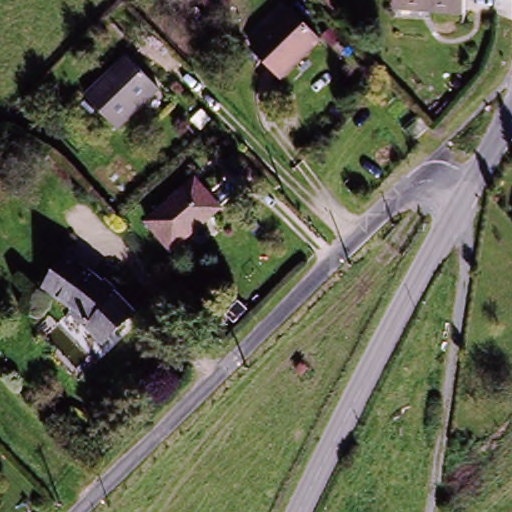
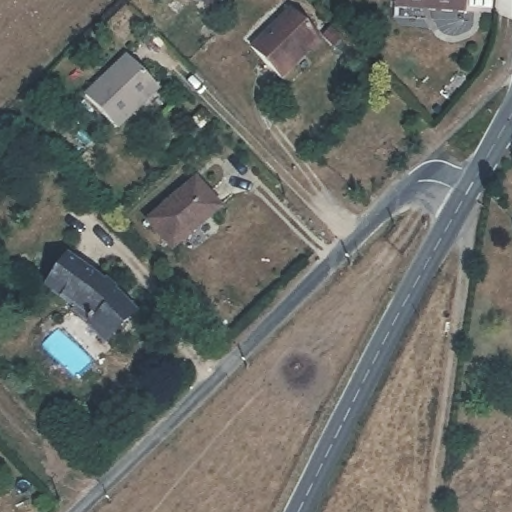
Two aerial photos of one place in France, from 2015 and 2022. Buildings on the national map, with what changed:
unchanged [(200,0),(203,0),(216,14),(208,21),(193,6),(200,0)]
unchanged [(466,19),(396,14),(397,0),(468,0),(466,19)]
unchanged [(287,15),(317,45),(278,83),(248,53),(287,15)]
unchanged [(332,30),(339,37),(342,41),(330,53),(326,49),(319,42),(329,33),(332,30)]
unchanged [(161,90),(120,129),(89,96),(129,57),(161,90)]
unchanged [(193,118),(202,128),(192,138),(182,128),(193,118)]
unchanged [(424,137),(416,146),(415,147),(412,149),(403,141),(416,128),(424,137)]
unchanged [(196,187),(215,211),(169,252),(149,229),(196,187)]
unchanged [(90,273),(106,287),(121,301),(131,312),(99,342),(88,330),(88,324),(86,319),(84,314),(78,309),(43,285),(62,254),(90,273)]

